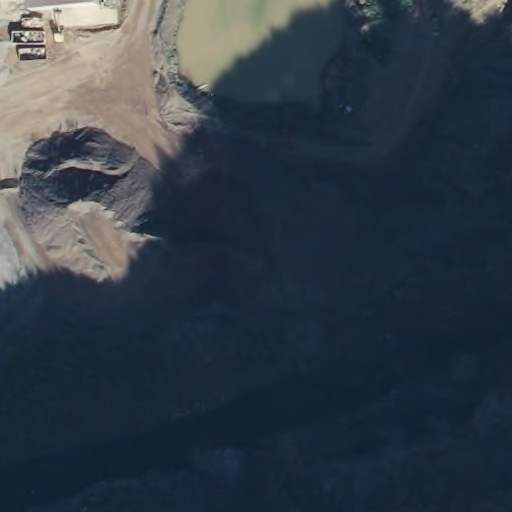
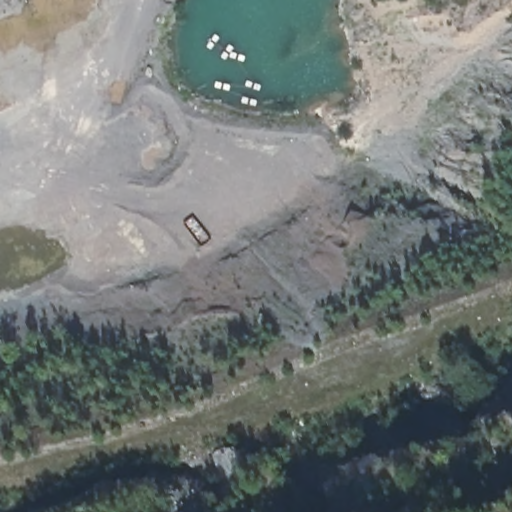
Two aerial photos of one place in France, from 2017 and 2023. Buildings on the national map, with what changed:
unchanged [(31,0),(96,0),(97,5),(32,10),(31,0)]

